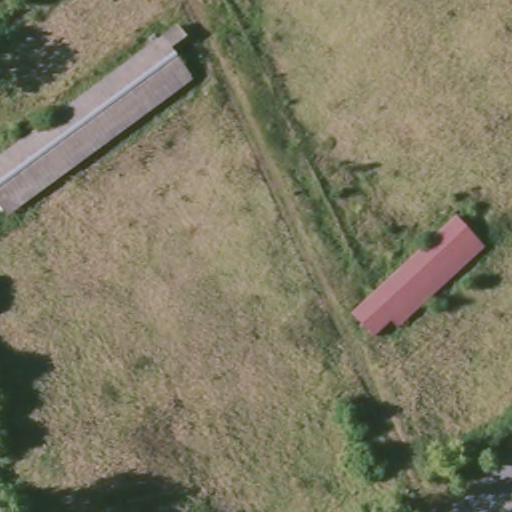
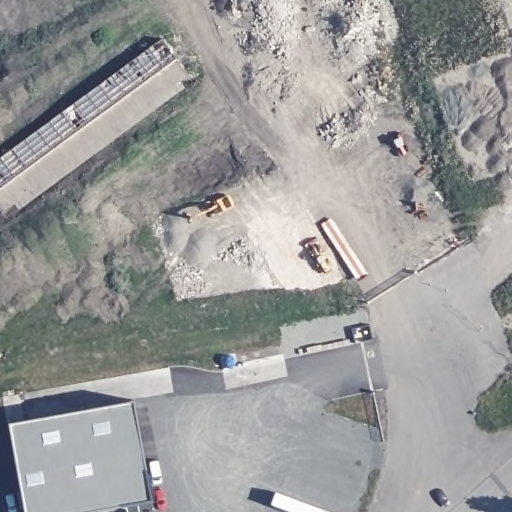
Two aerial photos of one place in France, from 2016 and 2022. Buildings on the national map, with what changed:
unchanged [(172,29),(183,42),(167,55),(184,77),(21,192),(0,162),(0,152),(172,29)]
unchanged [(446,229),(467,253),(380,329),(363,305),(365,302),(446,229)]
new [(88,512),(26,512),(12,425),(135,403),(150,500),(88,512)]

